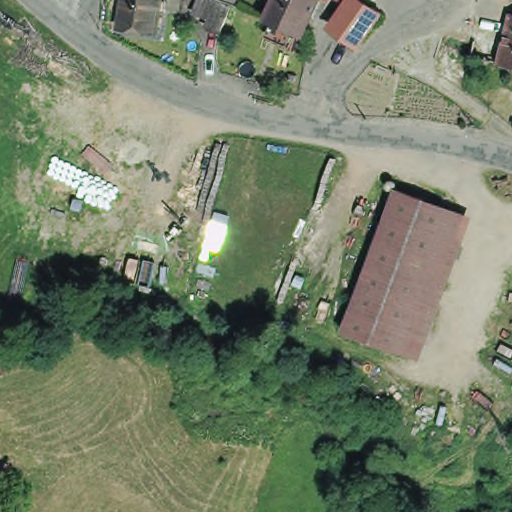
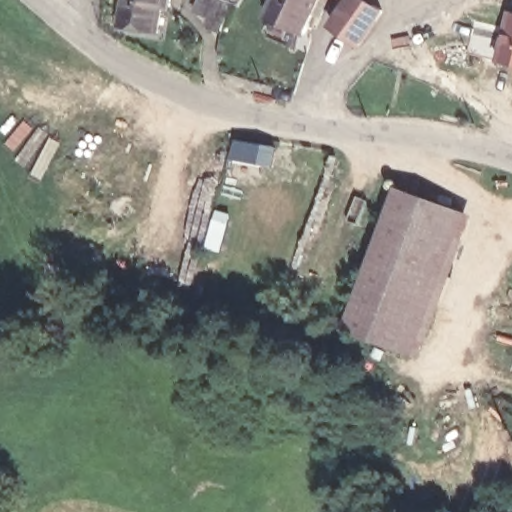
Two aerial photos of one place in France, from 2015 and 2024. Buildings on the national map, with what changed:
unchanged [(156,39),(119,34),(125,0),(162,0),(156,39)]
unchanged [(208,27),(211,19),(198,14),(193,12),(195,10),(198,1),(199,0),(214,0),(218,2),(231,7),(221,32),(208,27)]
unchanged [(319,24),(313,21),(304,41),(266,25),(278,0),(312,0),(321,4),(318,11),(324,13),(319,24)]
unchanged [(321,4),(312,0),(322,0),(321,4)]
unchanged [(354,10),(333,0),(354,0),(358,3),(381,18),(359,51),(336,38),(354,10)]
unchanged [(472,57),(478,31),(485,0),(487,0),(505,5),(499,35),(497,42),(507,45),(512,21),(512,66),(502,64),(472,57)]
unchanged [(398,356),(371,345),(341,334),(396,194),(419,201),(454,211),(398,356)]

